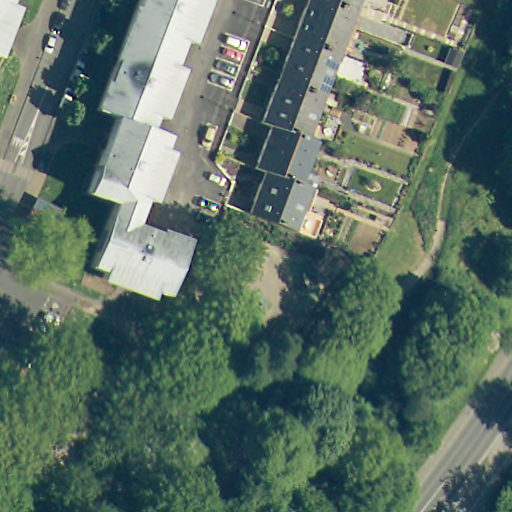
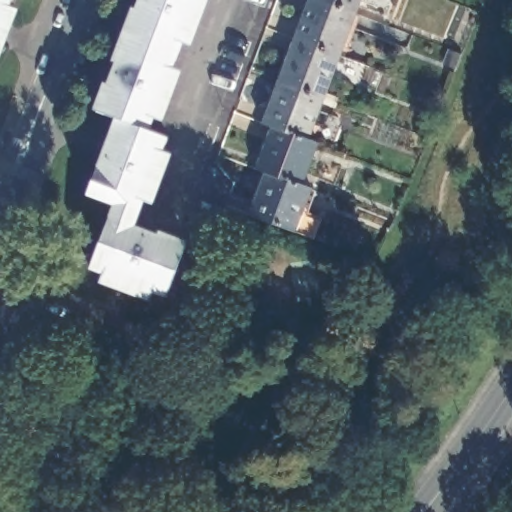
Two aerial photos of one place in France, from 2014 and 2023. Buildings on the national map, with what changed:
unchanged [(0,0),(7,0),(0,18),(0,0)]
unchanged [(126,29),(137,0),(190,0),(172,46),(126,29)]
unchanged [(305,0),(359,0),(352,18),(335,61),(289,43),(305,0)]
unchanged [(171,50),(144,122),(164,130),(145,180),(132,215),(110,207),(115,194),(89,185),(115,111),(98,104),(115,57),(125,32),(171,50)]
unchanged [(289,43),(335,61),(320,104),(272,85),(289,43)]
unchanged [(255,129),(272,85),(320,104),(303,146),(266,132),(255,129)]
unchanged [(266,179),(251,173),(266,132),(303,146),(313,150),(297,191),(266,179)]
unchanged [(313,196),(297,240),(250,221),(266,179),(297,191),(313,196)]
unchanged [(130,219),(181,238),(162,285),(92,258),(110,210),(130,219)]

